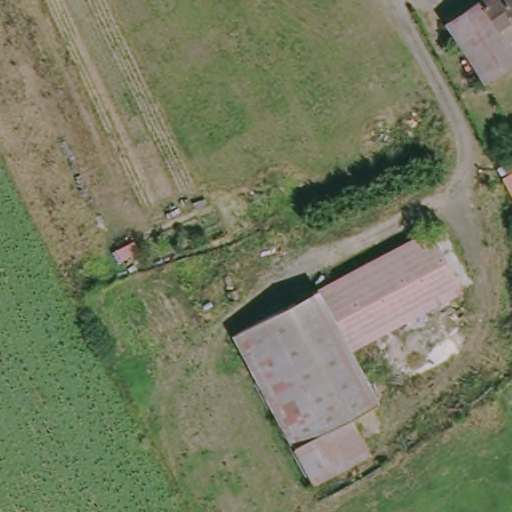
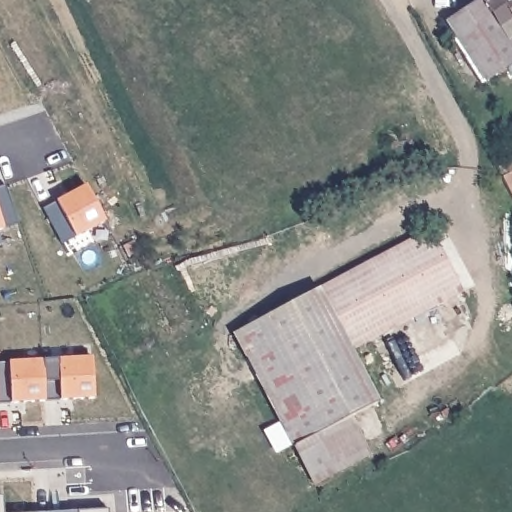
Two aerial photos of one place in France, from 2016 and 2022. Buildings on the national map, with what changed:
unchanged [(512,42),(512,69),(490,84),(449,25),(487,0),(512,0),(512,39),(511,40),(512,42)]
unchanged [(508,166),(512,176),(512,197),(499,171),(508,166)]
new [(6,185),(19,224),(0,230),(0,187),(6,185)]
new [(86,186),(106,222),(63,245),(43,209),(86,186)]
unchanged [(438,236),(467,295),(361,353),(388,407),(364,420),(381,455),(324,484),(241,338),(438,236)]
new [(92,358),(94,399),(45,401),(43,361),(92,358)]
new [(43,361),(45,401),(0,404),(0,363),(43,361)]
new [(3,496),(4,512),(0,512),(0,496),(3,496)]
new [(109,511),(110,512),(77,512),(109,511)]

